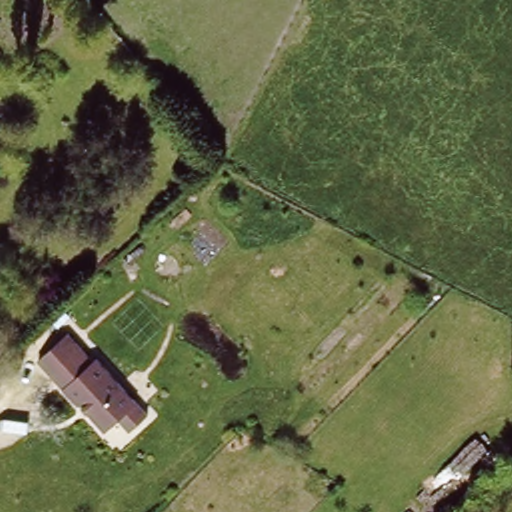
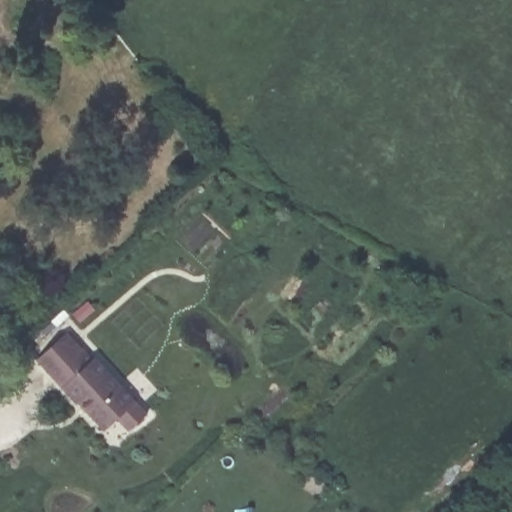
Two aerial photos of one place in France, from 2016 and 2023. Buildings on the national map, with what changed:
unchanged [(96,357),(137,402),(148,413),(129,431),(117,420),(106,430),(81,401),(78,405),(62,386),(38,360),(70,332),(96,357)]

